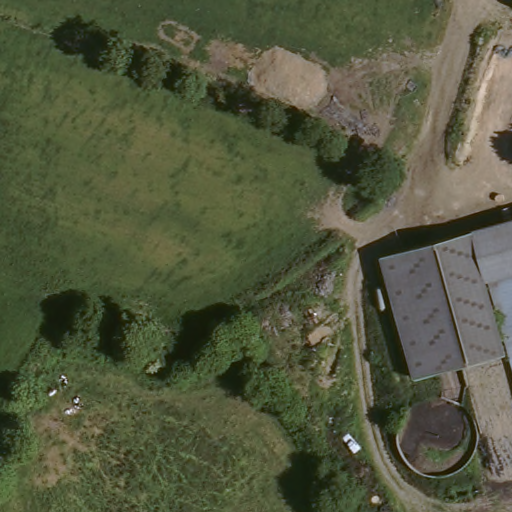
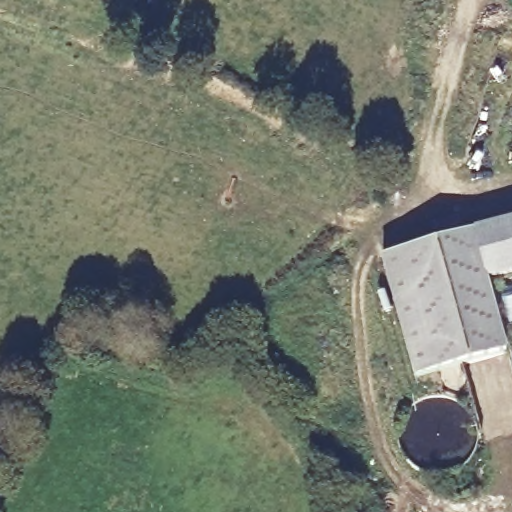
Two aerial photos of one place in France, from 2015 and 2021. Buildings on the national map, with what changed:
unchanged [(483,280),(499,351),(455,361),(408,371),(377,252),(512,218),(512,321),(500,324),(489,279),(483,280)]
unchanged [(512,370),(500,324),(512,321),(512,370)]

